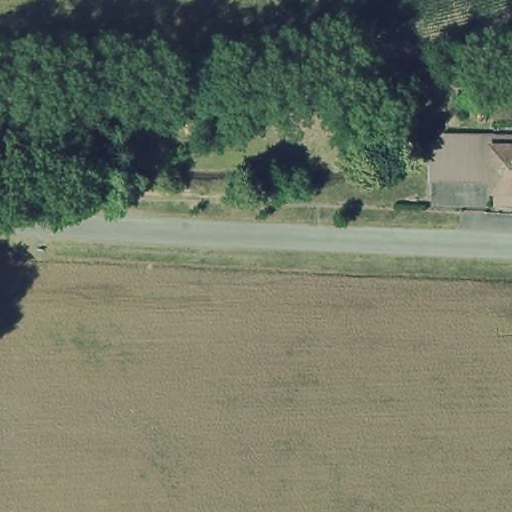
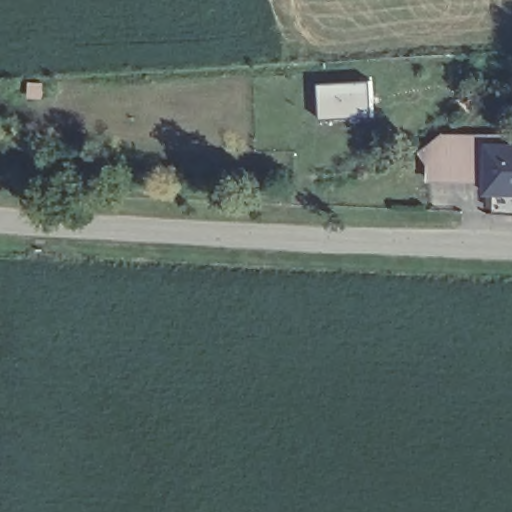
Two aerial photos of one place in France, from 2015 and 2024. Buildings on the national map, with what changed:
new [(373,116),(321,118),(319,83),(371,81),(373,116)]
unchanged [(422,169),(414,157),(443,139),(444,140),(481,141),(481,147),(480,147),(479,184),(422,182),(422,169)]
unchanged [(484,194),(478,194),(479,184),(480,147),(512,147),(512,204),(484,204),(484,194)]

